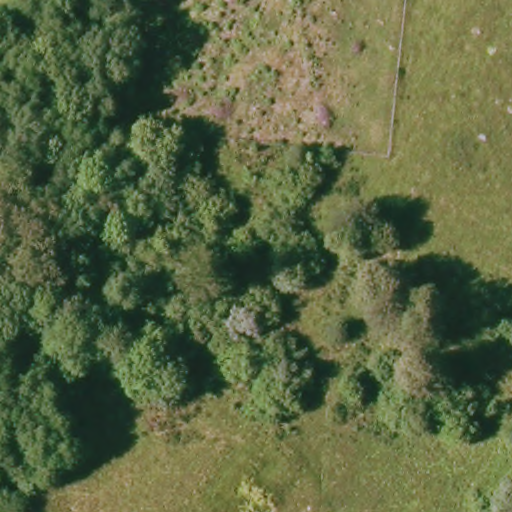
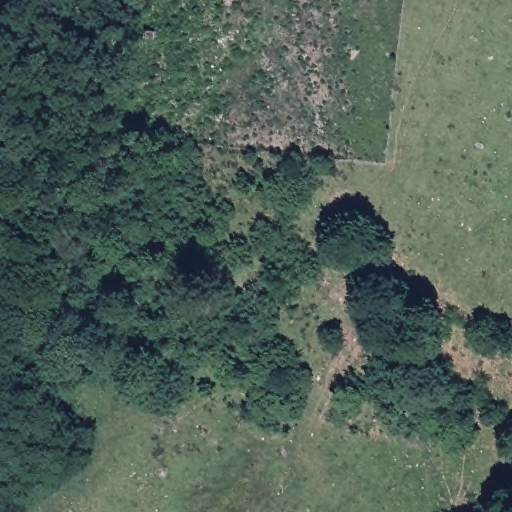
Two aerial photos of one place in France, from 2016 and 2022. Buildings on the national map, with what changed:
unchanged [(204,74),(193,66),(202,56),(211,62),(204,74)]

